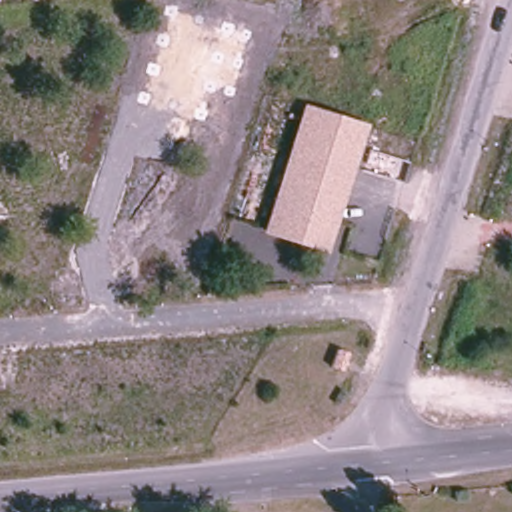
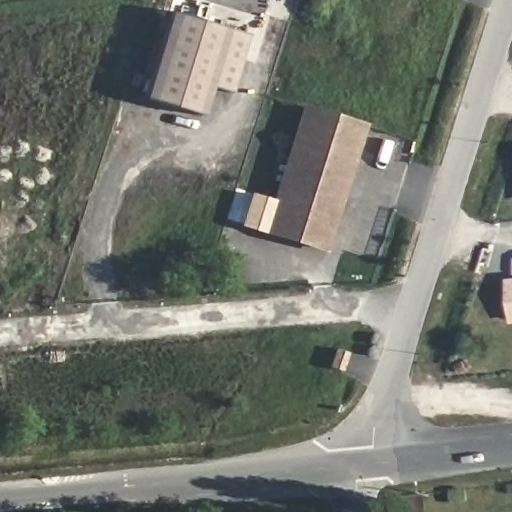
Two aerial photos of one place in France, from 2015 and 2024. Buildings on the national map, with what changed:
new [(210,85),(201,114),(143,97),(169,12),(246,35),(230,92),(210,85)]
unchanged [(364,124),(325,251),(260,231),(300,104),(364,124)]
new [(512,308),(509,277),(512,277),(512,308)]

